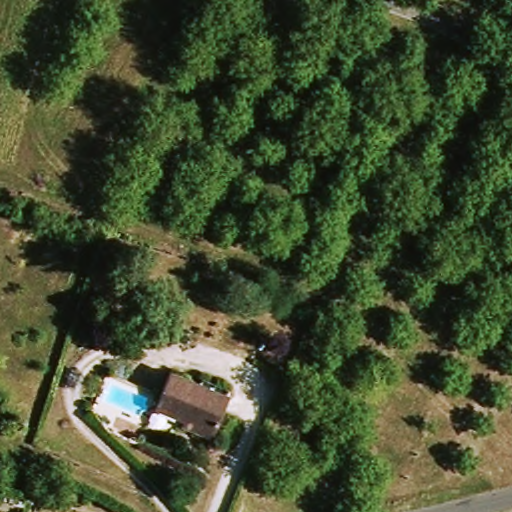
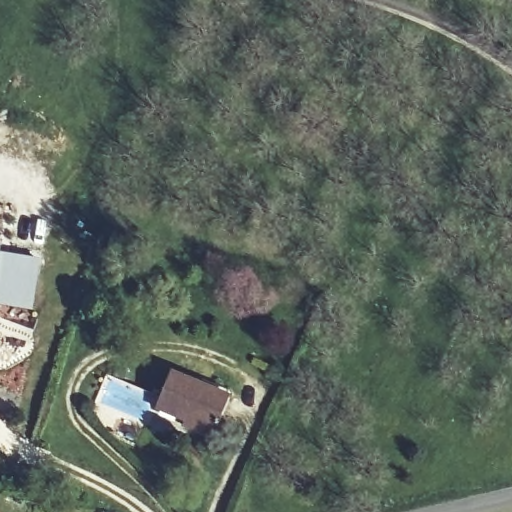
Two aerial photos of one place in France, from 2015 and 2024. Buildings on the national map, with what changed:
new [(0,245),(2,246),(0,251),(0,245)]
new [(33,310),(0,305),(0,252),(40,258),(33,310)]
unchanged [(181,429),(185,422),(157,409),(172,375),(230,402),(214,436),(210,443),(181,429)]

